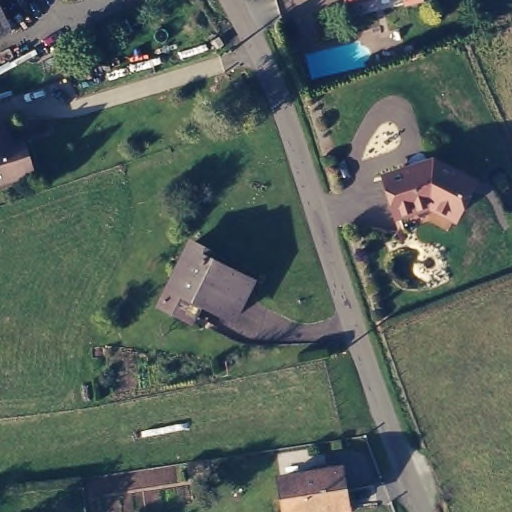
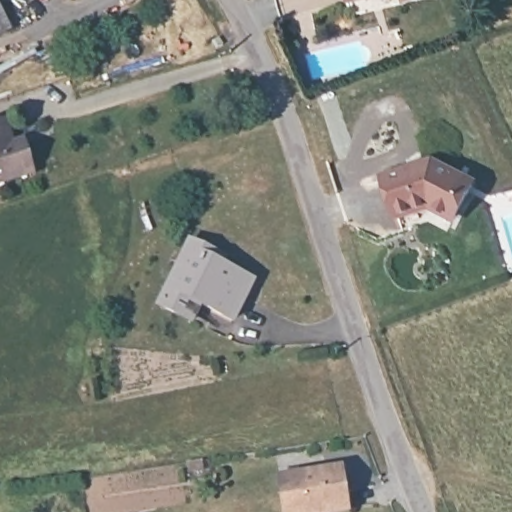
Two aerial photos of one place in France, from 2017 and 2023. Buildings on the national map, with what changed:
unchanged [(0,33),(0,0),(1,0),(13,30),(0,33)]
unchanged [(0,124),(5,123),(15,154),(22,152),(28,175),(0,184),(0,124)]
unchanged [(387,205),(376,169),(423,154),(462,174),(444,208),(437,221),(392,219),(387,205)]
unchanged [(217,255),(215,262),(246,278),(228,314),(196,299),(187,317),(155,301),(185,239),(205,249),(217,255)]
unchanged [(201,461),(203,470),(189,473),(187,463),(201,461)]
unchanged [(340,465),(346,505),(296,512),(285,512),(280,475),(340,465)]

